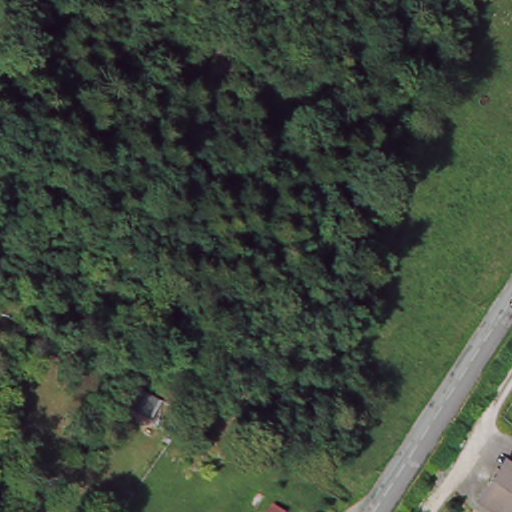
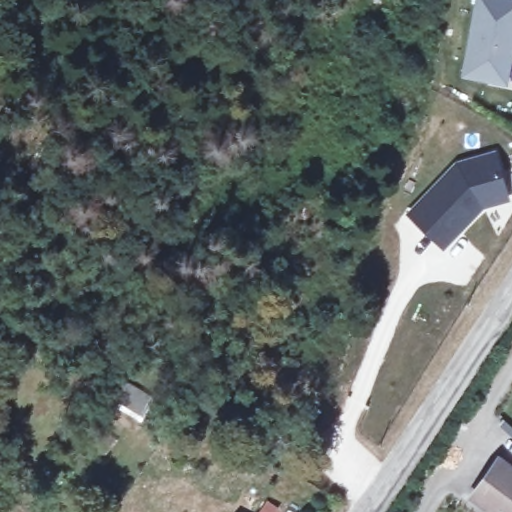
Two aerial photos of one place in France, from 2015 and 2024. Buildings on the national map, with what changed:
new [(506,85),(462,77),(475,0),(512,0),(512,53),(506,85)]
new [(456,161),(502,142),(512,186),(512,188),(483,196),(447,239),(413,211),(456,161)]
unchanged [(512,479),(512,478),(512,512),(492,512),(473,499),(494,467),(512,479)]

